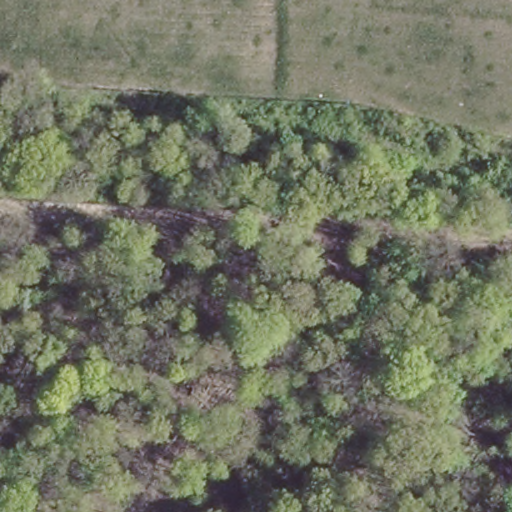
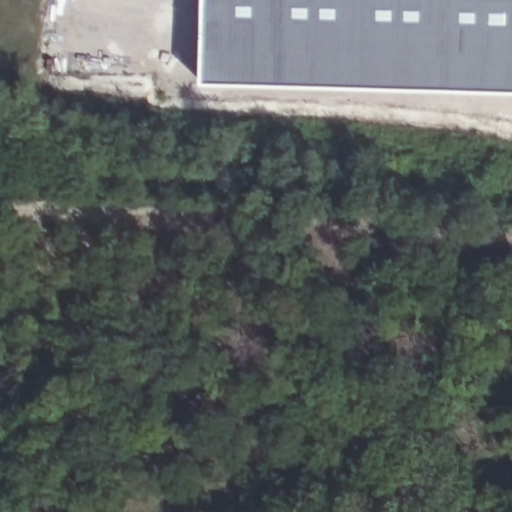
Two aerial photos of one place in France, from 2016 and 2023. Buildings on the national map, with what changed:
new [(200,83),(203,0),(512,0),(512,93),(200,83)]

